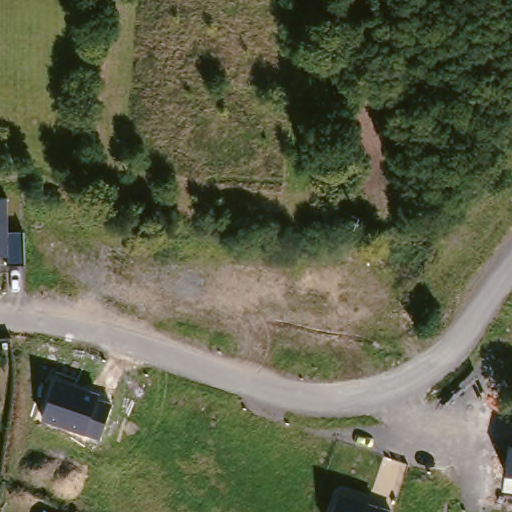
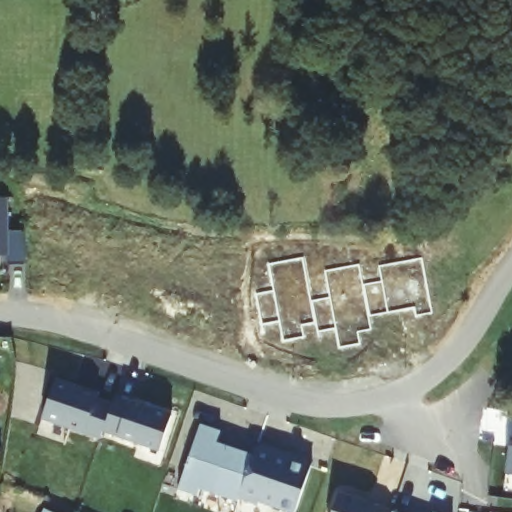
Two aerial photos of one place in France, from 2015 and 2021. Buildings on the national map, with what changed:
unchanged [(9,264),(9,257),(0,257),(0,199),(8,199),(9,232),(23,232),(24,265),(9,264)]
new [(369,324),(356,326),(358,338),(336,341),(334,333),(317,335),(317,330),(303,332),(305,344),(282,348),(281,341),(264,344),(259,307),(276,304),(272,276),(308,271),(312,301),(329,298),(326,271),(362,265),(364,285),(382,283),(379,266),(424,259),(432,316),(414,318),(413,315),(369,321),(369,324)]
unchanged [(99,392),(98,398),(113,403),(100,439),(42,419),(56,379),(99,392)]
new [(199,427),(218,435),(214,446),(252,459),(237,502),(236,505),(198,492),(196,499),(176,492),(199,427)]
unchanged [(505,475),(509,446),(512,446),(512,476),(505,475)]
new [(274,455),(282,457),(310,467),(294,512),(278,512),(256,505),(255,508),(237,502),(252,459),(256,448),(274,455)]
unchanged [(393,512),(331,512),(339,493),(393,511),(393,512)]

